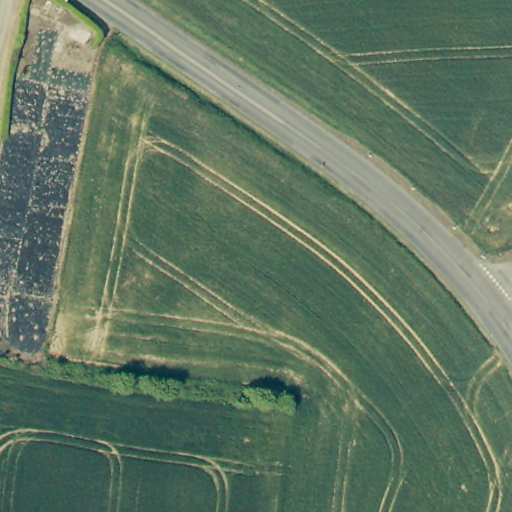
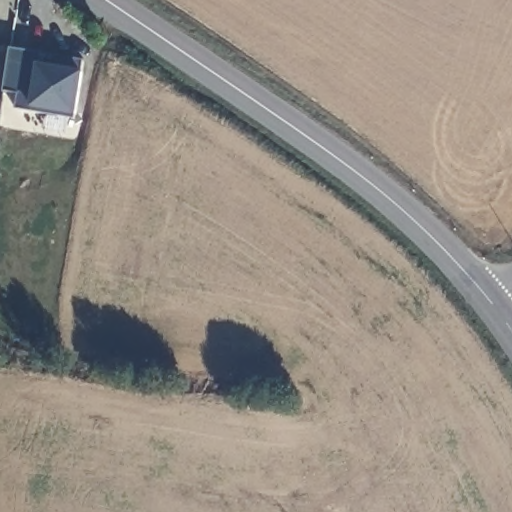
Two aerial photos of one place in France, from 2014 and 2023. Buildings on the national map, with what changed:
new [(76,118),(14,106),(17,92),(3,89),(11,48),(85,59),(76,118)]

